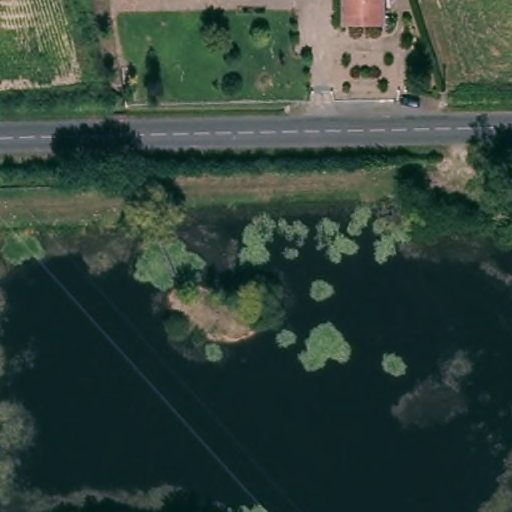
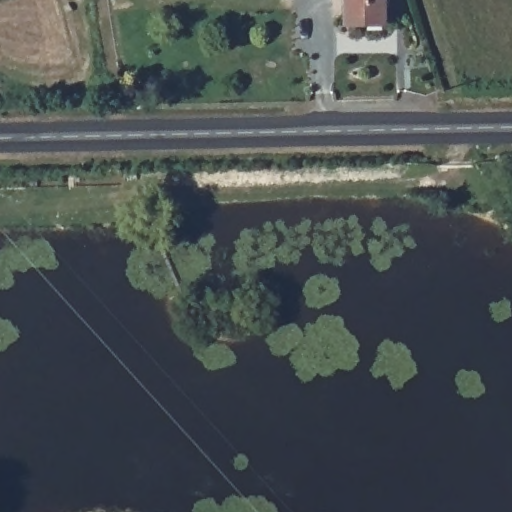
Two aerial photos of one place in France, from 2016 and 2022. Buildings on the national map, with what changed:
unchanged [(348,19),(348,0),(386,0),(386,18),(348,19)]

